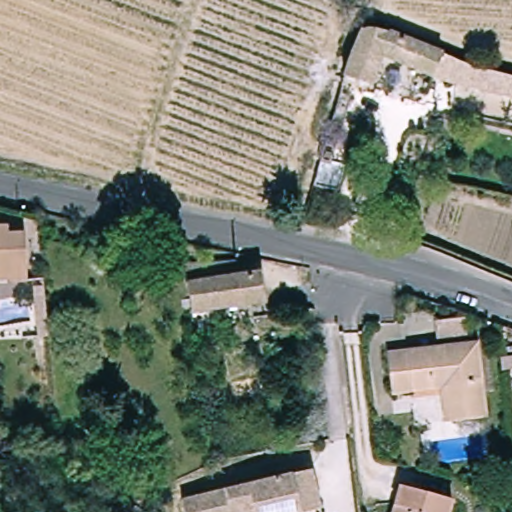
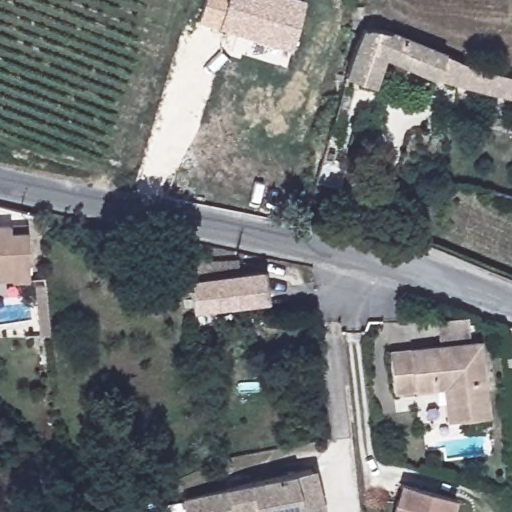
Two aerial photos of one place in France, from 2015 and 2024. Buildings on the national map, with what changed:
new [(198,22),(204,0),(306,0),(290,50),(218,28),(198,22)]
unchanged [(428,69),(378,48),(368,79),(341,70),(361,25),(383,29),(467,61),(512,74),(512,90),(428,69)]
unchanged [(13,227),(30,225),(35,272),(19,274),(18,272),(0,274),(0,220),(13,219),(13,227)]
unchanged [(272,300),(196,311),(193,282),(191,262),(243,259),(245,274),(266,270),(272,300)]
unchanged [(491,416),(458,419),(453,386),(397,391),(393,352),(481,342),(491,416)]
unchanged [(187,499),(317,468),(325,507),(325,512),(190,512),(187,499)]
unchanged [(408,482),(458,497),(454,512),(399,512),(408,482)]

